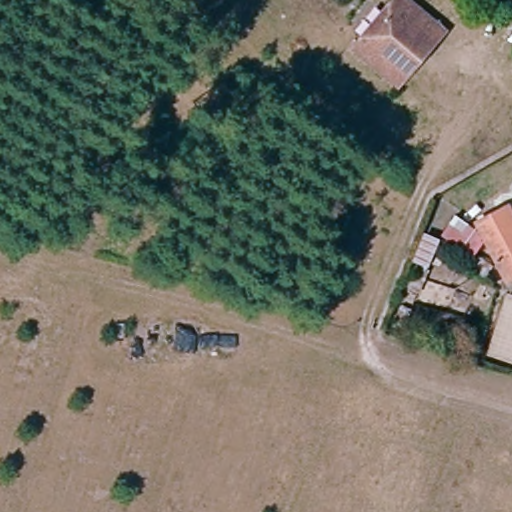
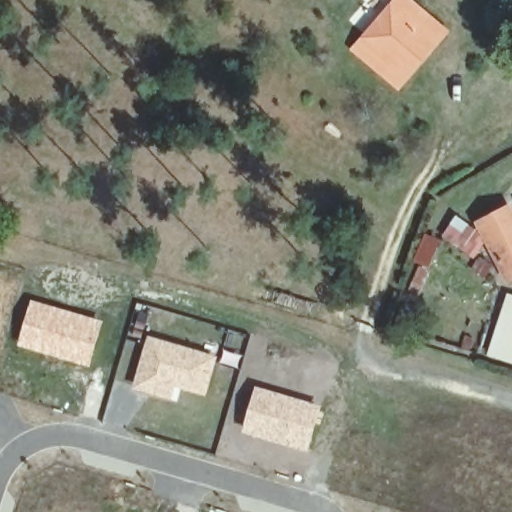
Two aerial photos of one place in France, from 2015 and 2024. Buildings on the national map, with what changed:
unchanged [(412,69),(402,80),(358,42),(368,30),(394,0),(419,0),(449,25),(439,37),(412,69)]
unchanged [(505,207),(512,219),(512,276),(508,278),(475,225),(505,207)]
new [(485,241),(477,254),(442,235),(454,214),(477,229),(485,241)]
unchanged [(501,288),(512,293),(512,364),(481,355),(501,288)]
new [(92,365),(19,345),(31,299),(105,320),(92,365)]
new [(173,398),(134,388),(148,335),(219,356),(208,396),(177,386),(173,398)]
new [(309,451),(243,432),(257,385),(323,405),(309,451)]

